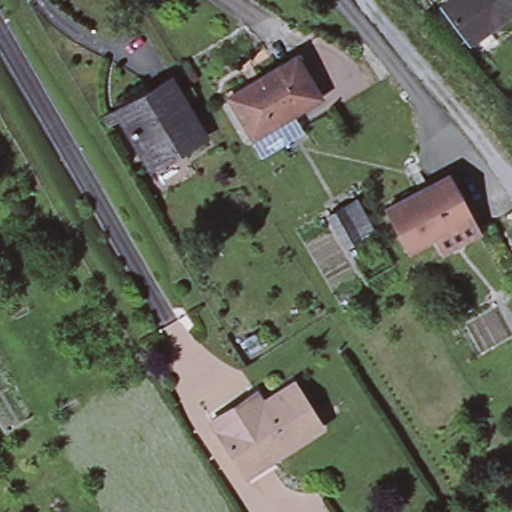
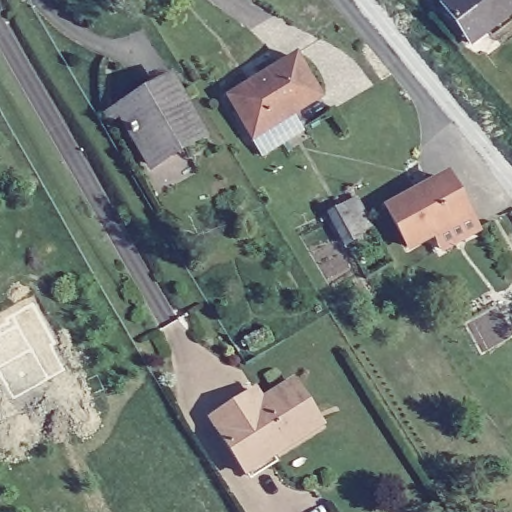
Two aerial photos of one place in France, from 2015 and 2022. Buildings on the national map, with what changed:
unchanged [(469,42),(439,4),(446,0),(480,0),(497,21),(469,42)]
unchanged [(512,1),(512,10),(497,21),(480,0),(511,0),(512,1)]
unchanged [(321,97),(253,139),(227,97),(296,56),(321,97)]
unchanged [(159,160),(151,165),(119,110),(126,106),(162,85),(168,81),(201,135),(194,139),(159,160)]
unchanged [(441,248),(434,236),(432,230),(407,244),(386,206),(420,187),(423,192),(449,178),(469,216),(477,228),(441,248)]
unchanged [(358,199),(374,236),(338,258),(317,218),(358,199)]
new [(18,327),(13,316),(33,306),(54,344),(50,346),(64,371),(13,399),(0,377),(0,337),(18,327)]
unchanged [(293,382),(321,425),(297,440),(270,397),(293,382)]
unchanged [(256,390),(263,401),(270,397),(297,440),(248,472),(213,417),(256,390)]

